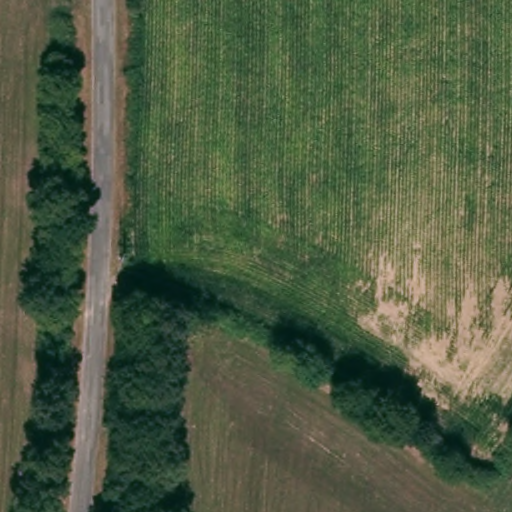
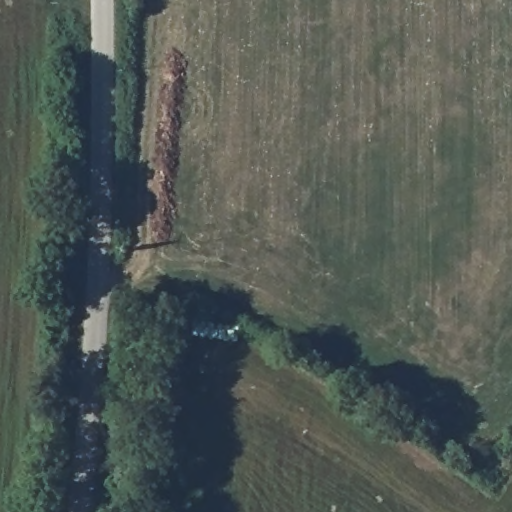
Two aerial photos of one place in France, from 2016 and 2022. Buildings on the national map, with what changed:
[]

